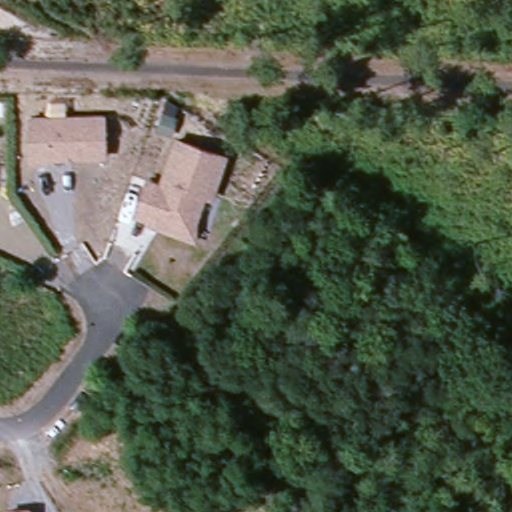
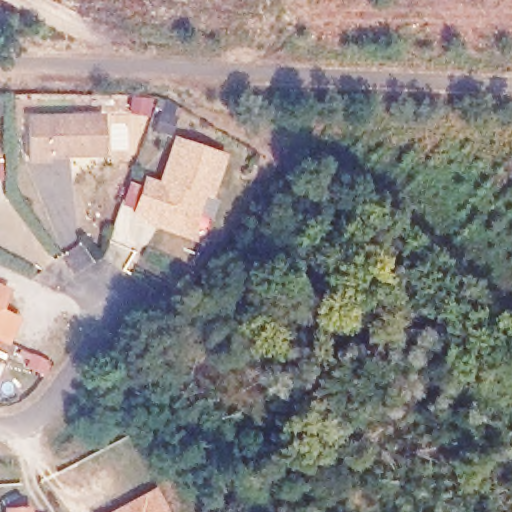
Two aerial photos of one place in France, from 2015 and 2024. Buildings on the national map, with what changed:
unchanged [(6,118),(0,117),(0,102),(6,102),(6,118)]
unchanged [(49,160),(32,161),(31,116),(105,115),(106,156),(49,156),(49,160)]
unchanged [(180,123),(174,141),(158,136),(164,117),(180,123)]
unchanged [(152,230),(154,224),(138,219),(149,186),(164,191),(180,145),(219,159),(206,198),(199,195),(191,218),(190,241),(152,230)]
new [(3,309),(20,319),(10,347),(0,341),(0,284),(10,289),(3,309)]
new [(170,512),(110,512),(157,488),(170,512)]
unchanged [(6,507),(31,504),(32,512),(7,512),(6,507)]

